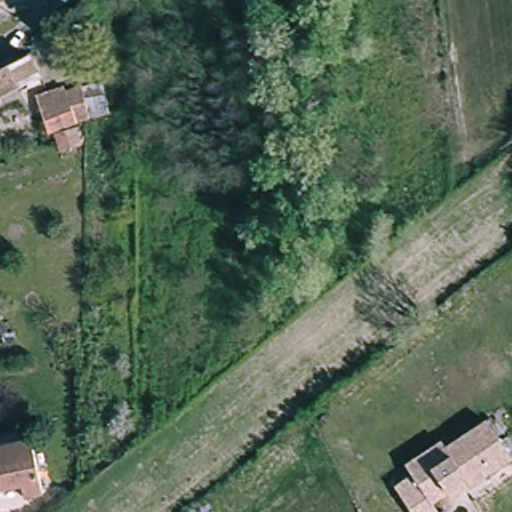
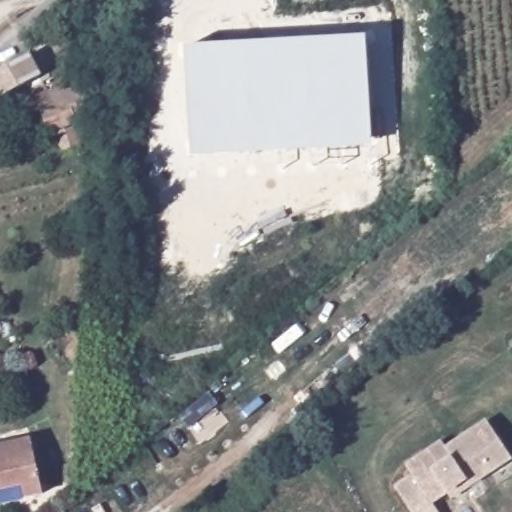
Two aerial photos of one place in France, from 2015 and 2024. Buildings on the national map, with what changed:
new [(193,158),(187,46),(367,36),(373,149),(193,158)]
unchanged [(10,71),(20,91),(0,102),(0,73),(10,71)]
unchanged [(49,128),(42,105),(57,100),(55,93),(66,90),(76,119),(49,128)]
unchanged [(60,146),(55,135),(53,128),(76,120),(81,139),(60,146)]
unchanged [(451,448),(493,422),(512,455),(512,463),(472,487),(468,479),(433,500),(440,512),(414,512),(398,486),(416,475),(409,464),(447,441),(451,448)]
unchanged [(41,491),(25,496),(21,483),(0,489),(0,445),(27,439),(29,448),(41,491)]
demolished [(211,512),(192,512),(191,510),(204,500),(211,512)]

